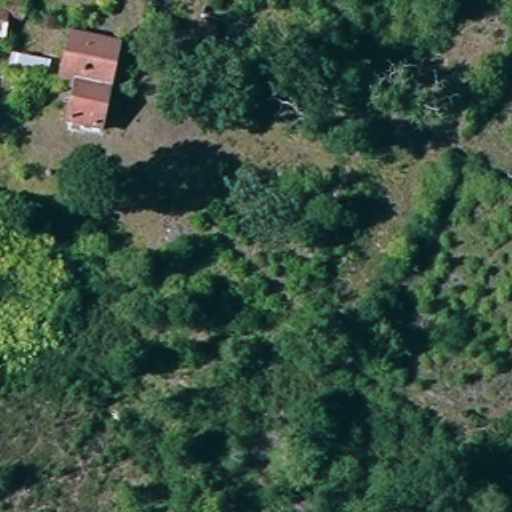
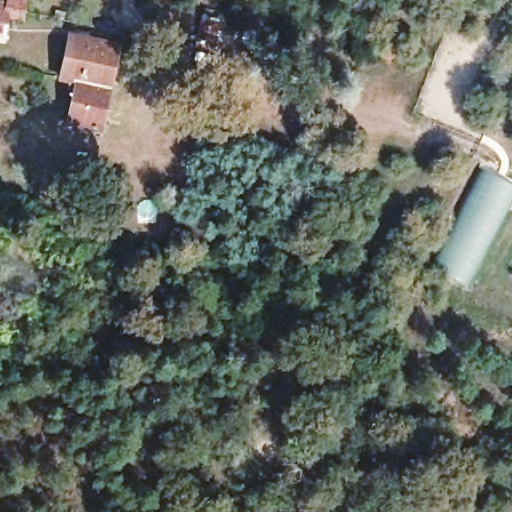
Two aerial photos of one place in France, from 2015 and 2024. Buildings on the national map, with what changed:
unchanged [(27,0),(37,3),(35,9),(32,18),(15,14),(10,31),(0,29),(0,0),(15,4),(18,0),(27,0)]
unchanged [(118,48),(99,133),(65,124),(75,77),(64,75),(72,37),(118,48)]
new [(430,266),(481,169),(512,185),(512,202),(467,286),(430,266)]

